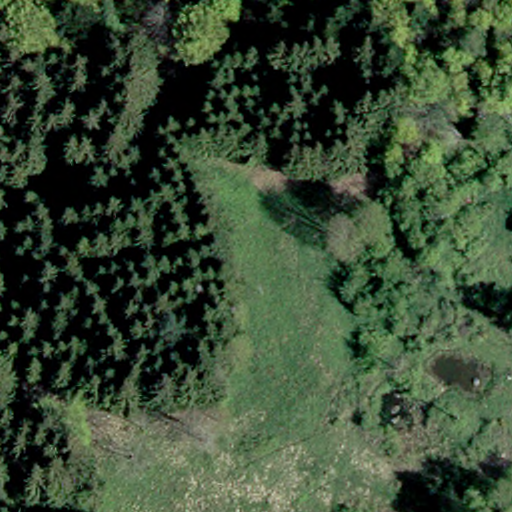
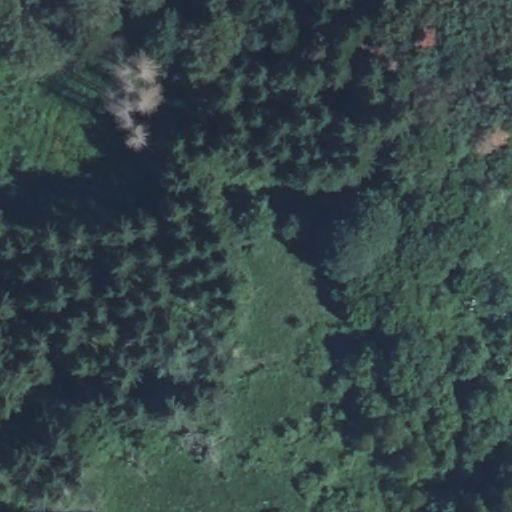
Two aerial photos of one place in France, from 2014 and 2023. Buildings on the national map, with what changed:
[]

